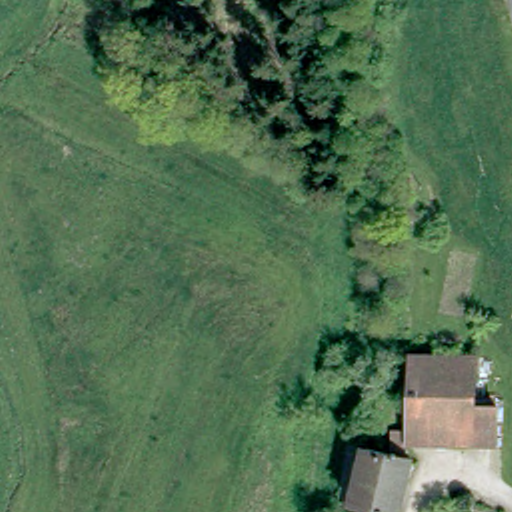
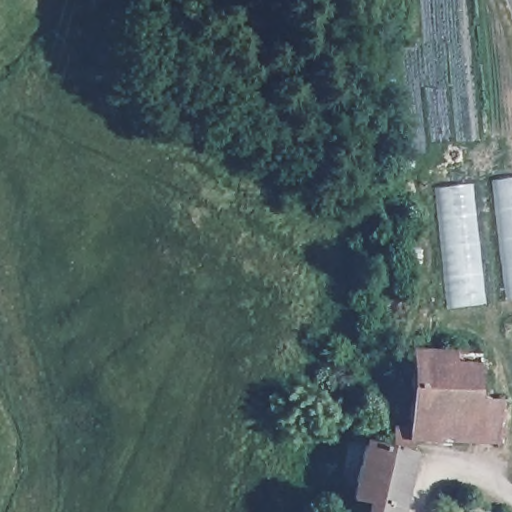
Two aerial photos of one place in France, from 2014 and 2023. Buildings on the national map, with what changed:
new [(512,299),(510,299),(495,179),(512,177),(512,299)]
new [(468,184),(480,304),(450,308),(435,188),(468,184)]
unchanged [(492,442),(472,442),(404,441),(402,455),(384,449),(385,438),(389,439),(390,426),(402,427),(407,351),(475,354),(474,403),(495,404),(492,442)]
unchanged [(393,512),(362,512),(365,503),(349,498),(365,444),(384,449),(402,455),(409,457),(393,512)]

